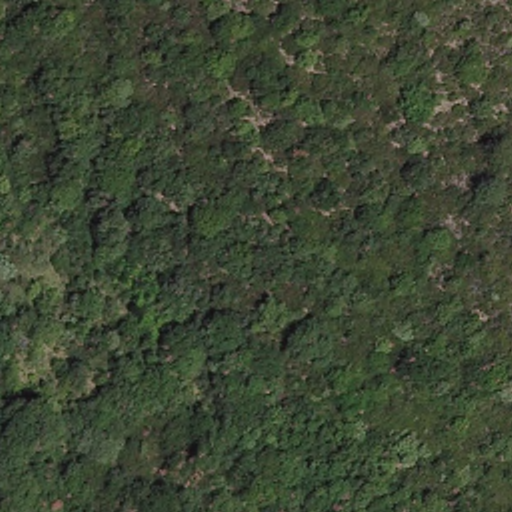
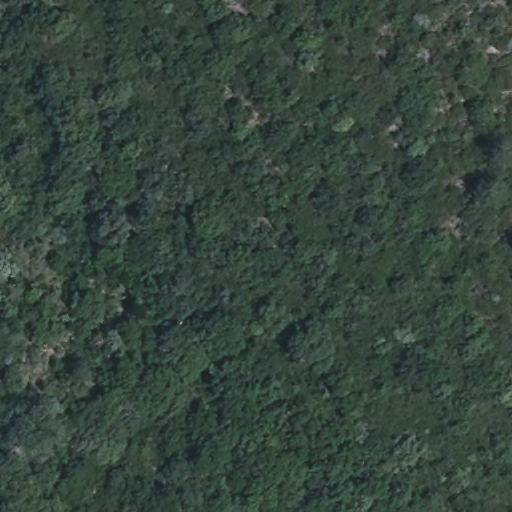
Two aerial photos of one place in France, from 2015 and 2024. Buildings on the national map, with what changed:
[]

